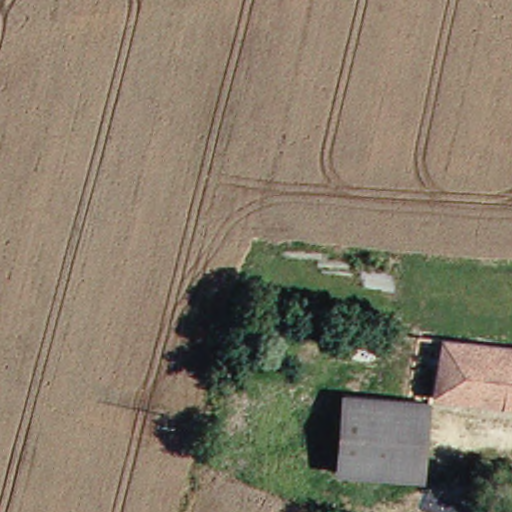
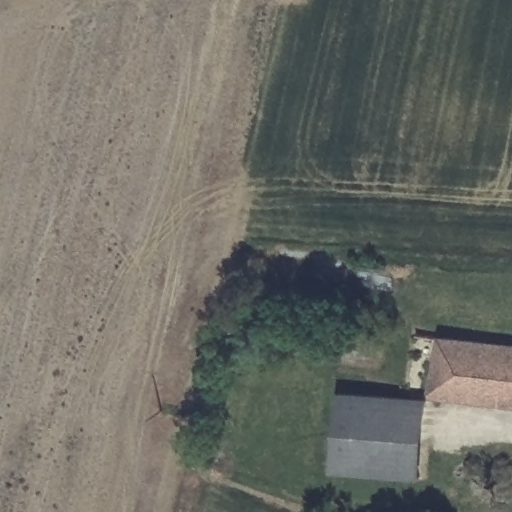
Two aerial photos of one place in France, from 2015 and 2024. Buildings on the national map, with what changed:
unchanged [(324,358),(326,330),(375,334),(371,362),(324,358)]
unchanged [(429,384),(412,382),(415,362),(431,364),(432,354),(406,351),(407,334),(512,348),(512,405),(428,392),(429,384)]
unchanged [(339,397),(422,407),(417,462),(333,453),(339,397)]
unchanged [(332,470),(333,453),(417,462),(416,478),(332,470)]

